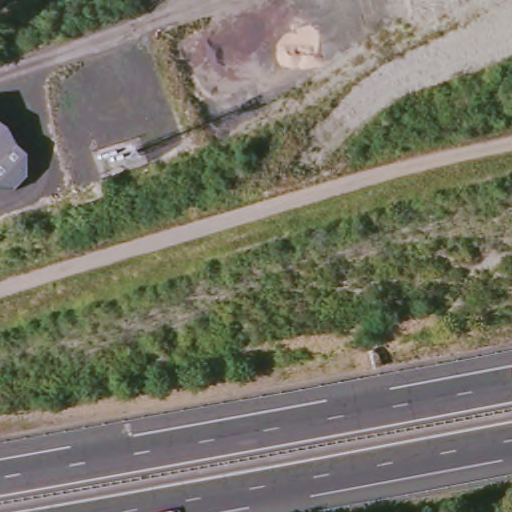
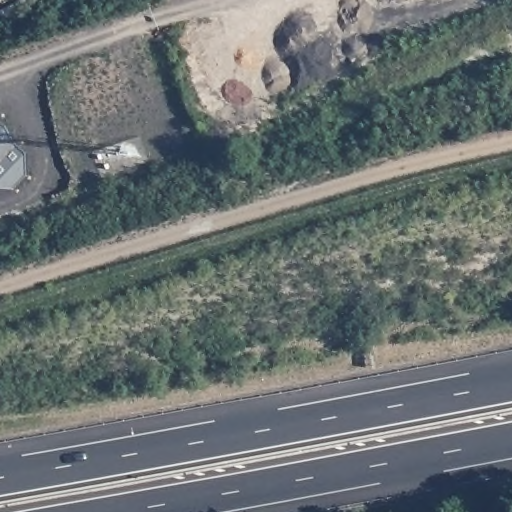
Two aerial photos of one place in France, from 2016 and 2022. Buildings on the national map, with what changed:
unchanged [(17,146),(25,148),(24,172),(11,187),(0,185),(0,121),(6,122),(17,146)]

